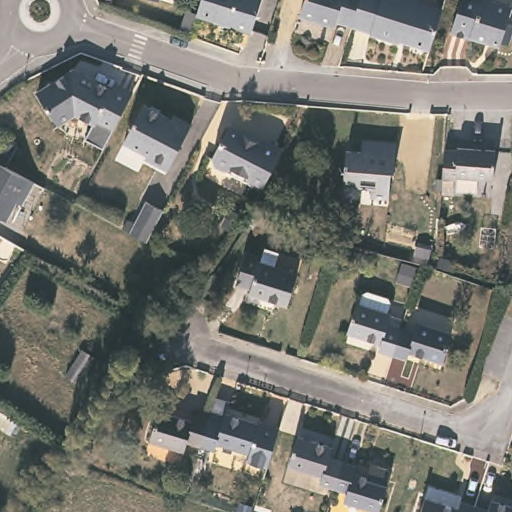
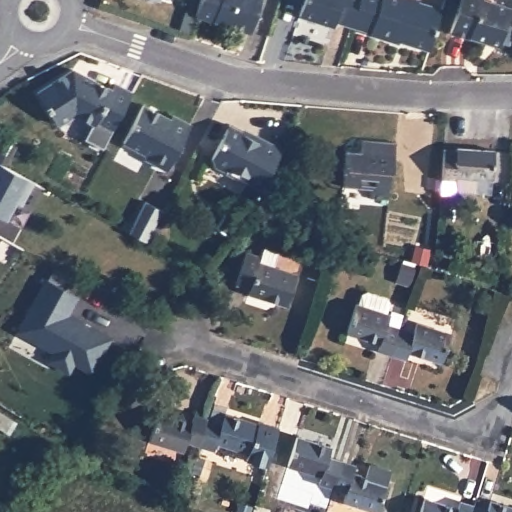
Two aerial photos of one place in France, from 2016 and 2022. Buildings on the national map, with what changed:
unchanged [(239,25),(240,23),(228,19),(227,21),(204,14),(208,0),(270,0),(268,6),(265,15),(260,31),(239,25)]
unchanged [(334,19),(332,25),(295,13),(299,0),(355,0),(348,24),(334,19)]
unchanged [(413,0),(438,7),(432,25),(425,49),(396,39),(395,43),(366,34),(367,30),(348,24),(355,0),(413,0)]
unchanged [(447,30),(457,0),(482,0),(507,8),(502,23),(509,26),(503,43),(498,41),(495,48),(481,43),(447,30)]
unchanged [(55,119),(36,89),(73,67),(78,70),(85,73),(111,88),(115,82),(131,90),(102,147),(84,137),(92,121),(74,112),(56,122),(55,119)]
unchanged [(170,117),(173,114),(190,123),(166,169),(144,157),(146,152),(123,140),(142,103),(170,117)]
unchanged [(249,127),(278,139),(257,184),(238,176),(236,171),(226,166),(220,168),(208,163),(205,155),(220,121),(222,117),(237,123),(249,128),(249,127)]
unchanged [(397,136),(395,166),(392,166),(389,193),(371,192),(371,182),(345,180),(347,146),(361,147),(362,133),(397,136)]
unchanged [(458,172),(458,175),(447,175),(448,142),(460,142),(460,139),(497,142),(499,142),(497,175),(495,175),(458,172)]
unchanged [(18,203),(11,199),(1,217),(0,216),(0,164),(30,180),(18,203)]
unchanged [(160,210),(144,241),(126,231),(143,200),(160,210)]
unchanged [(272,257),(270,261),(308,273),(298,304),(260,293),(261,288),(245,283),(255,252),(272,257)]
new [(49,279),(56,267),(84,282),(76,295),(80,296),(71,314),(111,336),(93,374),(75,363),(70,373),(46,360),(52,351),(16,331),(46,278),(49,279)]
unchanged [(397,359),(383,355),(386,347),(354,336),(362,308),(366,309),(368,299),(375,296),(393,301),(396,308),(393,318),(396,319),(393,328),(406,332),(397,359)]
unchanged [(420,336),(423,327),(456,337),(448,366),(414,356),(412,364),(397,359),(406,332),(420,336)]
unchanged [(186,440),(183,450),(149,440),(158,409),(191,419),(193,413),(207,417),(199,444),(186,440)]
unchanged [(220,421),(223,411),(256,422),(257,419),(278,426),(266,465),(245,459),(247,450),(217,441),(214,449),(199,444),(207,417),(220,421)]
unchanged [(332,486),(317,481),(319,473),(288,462),(296,435),(330,446),(328,454),(341,457),(332,486)]
unchanged [(354,462),(352,470),(387,481),(377,511),(342,500),(345,490),(332,486),(341,457),(354,462)]
unchanged [(469,512),(417,512),(423,492),(459,503),(461,495),(474,499),(469,512)]
unchanged [(474,499),(487,503),(490,494),(512,501),(512,512),(469,512),(474,499)]

